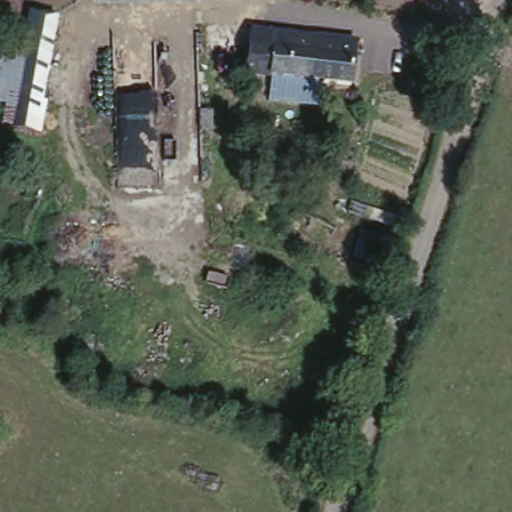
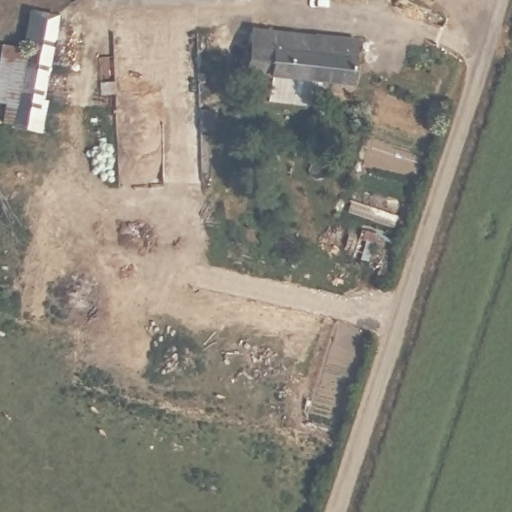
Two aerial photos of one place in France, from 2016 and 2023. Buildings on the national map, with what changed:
unchanged [(91,0),(250,0),(250,1),(91,8),(91,0)]
unchanged [(24,53),(30,5),(60,10),(43,133),(12,128),(16,108),(0,105),(0,50),(24,53)]
unchanged [(360,45),(354,88),(246,74),(250,48),(255,49),(257,31),(311,38),(360,45)]
unchanged [(352,258),(360,230),(385,238),(375,264),(352,258)]

